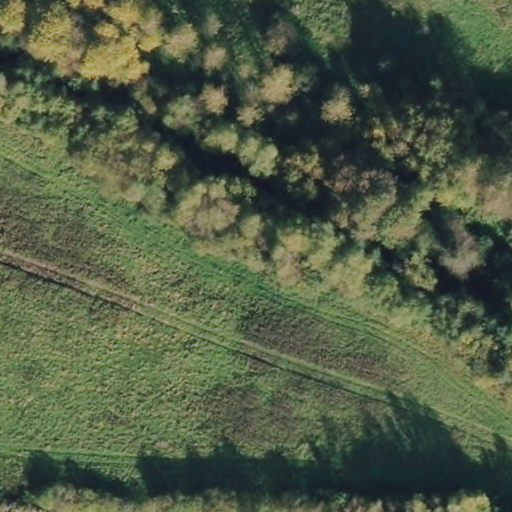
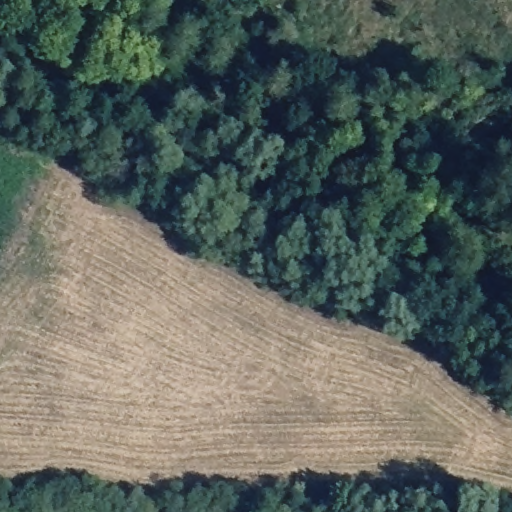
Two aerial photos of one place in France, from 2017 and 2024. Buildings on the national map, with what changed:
[]

